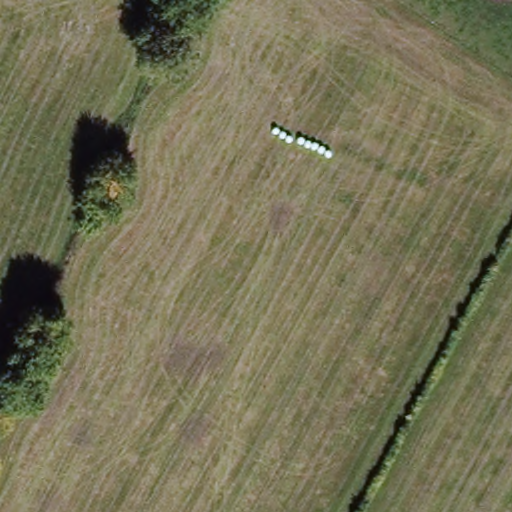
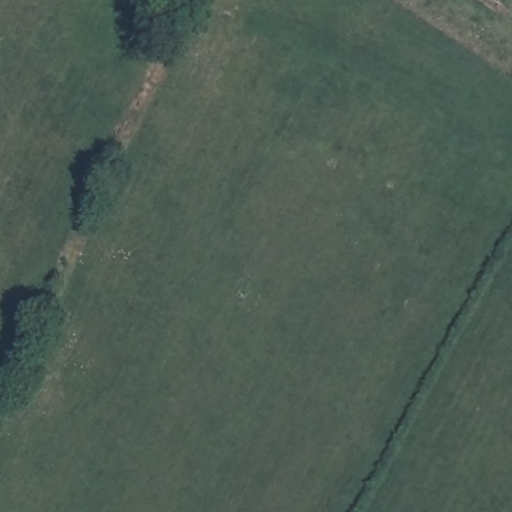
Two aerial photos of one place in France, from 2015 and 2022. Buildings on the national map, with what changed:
[]

